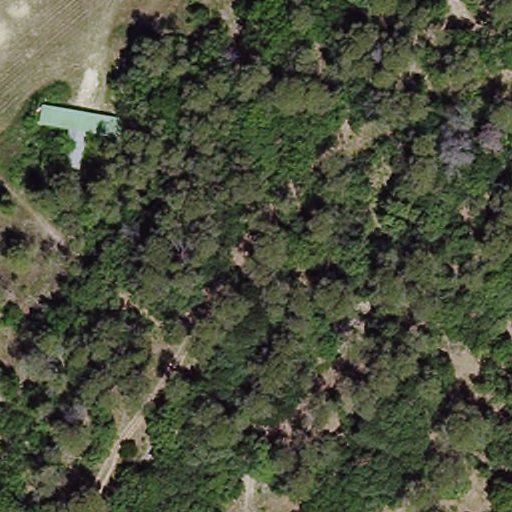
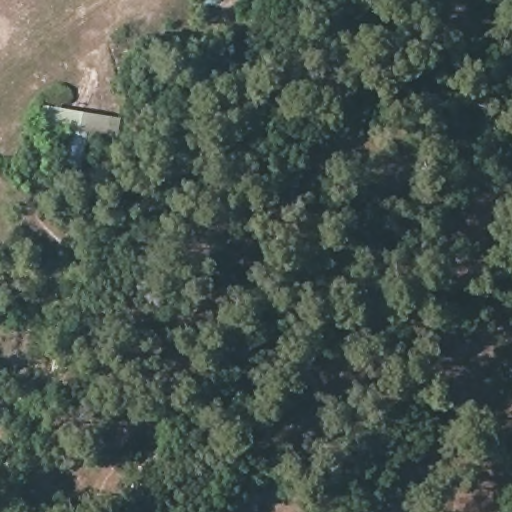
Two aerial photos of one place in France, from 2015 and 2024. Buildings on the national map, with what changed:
unchanged [(64,126),(84,126),(78,172),(61,169),(64,126)]

